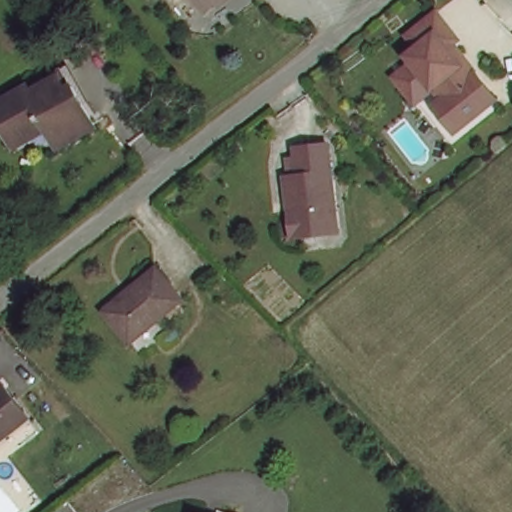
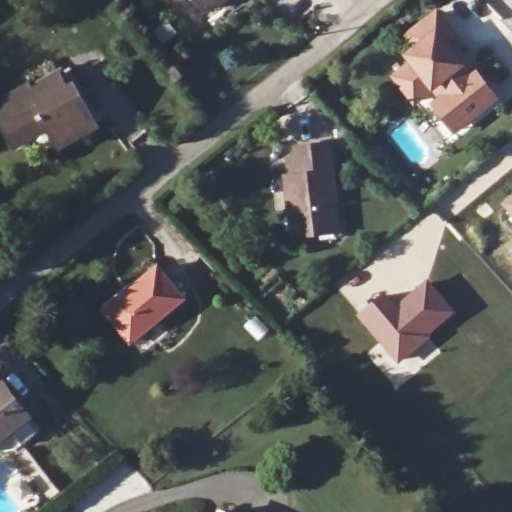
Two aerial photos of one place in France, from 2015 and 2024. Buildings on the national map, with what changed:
unchanged [(214,0),(216,0),(215,1),(214,0)]
unchanged [(467,136),(447,110),(454,104),(445,93),(427,106),(407,81),(425,66),(420,61),(430,53),(421,41),(450,18),(469,45),(460,53),(466,61),(471,56),(502,96),(509,104),(467,136)]
unchanged [(50,145),(42,131),(19,145),(0,112),(0,95),(25,80),(64,59),(67,66),(98,120),(50,145)]
unchanged [(293,219),(290,183),(295,183),(293,166),(307,164),(306,153),(340,151),(349,240),(308,244),(295,245),(293,219)]
new [(512,218),(499,202),(512,192),(512,218)]
unchanged [(106,302),(162,258),(192,293),(135,339),(106,302)]
new [(455,313),(430,336),(432,338),(397,365),(357,316),(385,292),(397,306),(427,280),(455,313)]
unchanged [(4,379),(30,416),(0,439),(0,382),(4,379)]
unchanged [(229,511),(233,512),(228,512),(229,511)]

